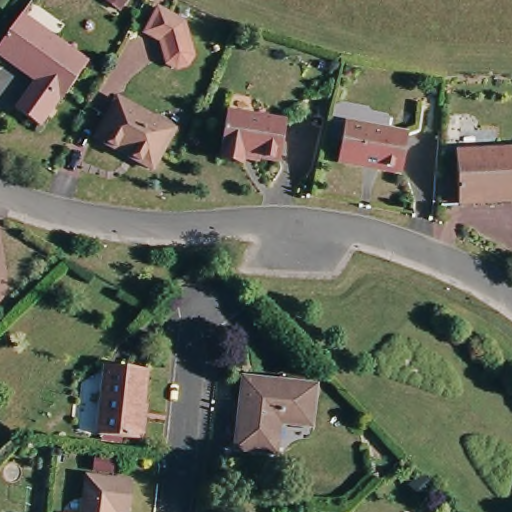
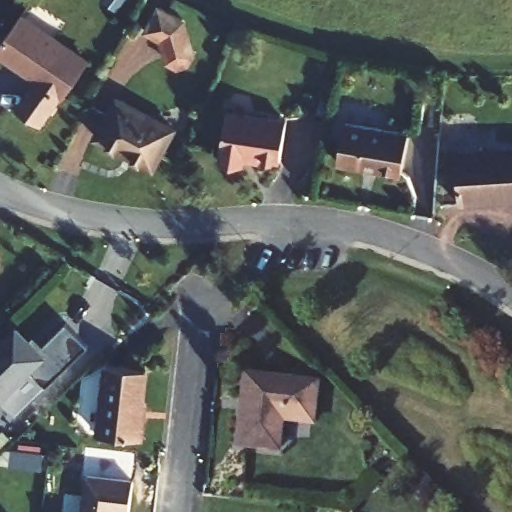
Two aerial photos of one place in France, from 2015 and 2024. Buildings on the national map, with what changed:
unchanged [(187,64),(175,67),(166,62),(165,56),(160,39),(144,31),(157,7),(182,20),(190,48),(192,54),(187,64)]
unchanged [(88,66),(62,103),(59,101),(39,130),(16,114),(36,85),(0,60),(0,49),(20,19),(88,66)]
unchanged [(175,127),(153,166),(135,156),(136,154),(128,149),(127,152),(96,136),(117,96),(175,127)]
unchanged [(285,123),(278,162),(244,157),(243,162),(219,158),(227,113),(285,123)]
unchanged [(407,134),(400,174),(377,170),(377,167),(363,164),(362,167),(337,163),(343,123),(407,134)]
unchanged [(476,208),(476,210),(453,211),(451,157),(512,154),(512,206),(476,208)]
new [(87,345),(17,413),(2,398),(0,399),(0,339),(17,321),(42,346),(66,323),(87,345)]
unchanged [(105,365),(143,369),(138,415),(143,415),(141,437),(97,433),(105,365)]
unchanged [(278,418),(275,448),(237,444),(243,374),(314,382),(310,415),(310,421),(278,418)]

